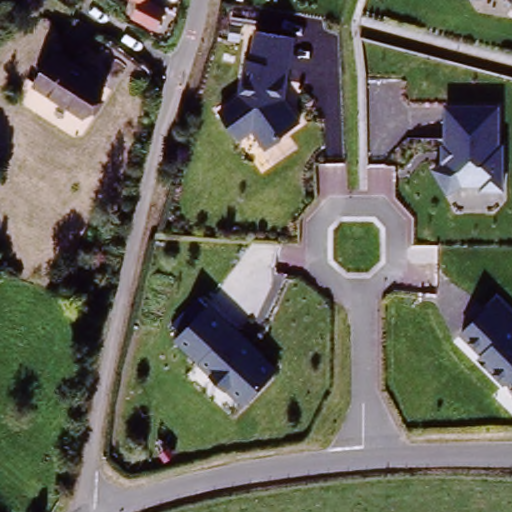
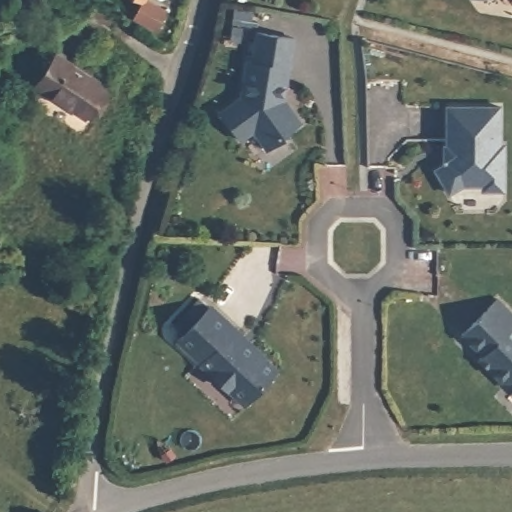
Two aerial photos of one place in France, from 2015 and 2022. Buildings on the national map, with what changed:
unchanged [(132,20),(140,4),(132,0),(147,0),(168,11),(157,32),(132,20)]
unchanged [(480,4),(477,0),(484,0),(480,4)]
unchanged [(240,94),(245,60),(250,60),(255,29),(292,31),(284,80),(282,100),(288,107),(269,126),(258,115),(238,131),(221,107),(240,94)]
unchanged [(87,121),(35,88),(56,52),(107,85),(87,121)]
unchanged [(443,158),(445,104),(503,104),(503,190),(485,189),(482,185),(465,184),(451,192),(435,166),(443,158)]
unchanged [(512,313),(512,380),(510,378),(506,382),(470,342),(472,339),(462,327),(494,295),(512,313)]
unchanged [(215,297),(270,348),(268,352),(281,366),(245,407),(180,336),(215,297)]

